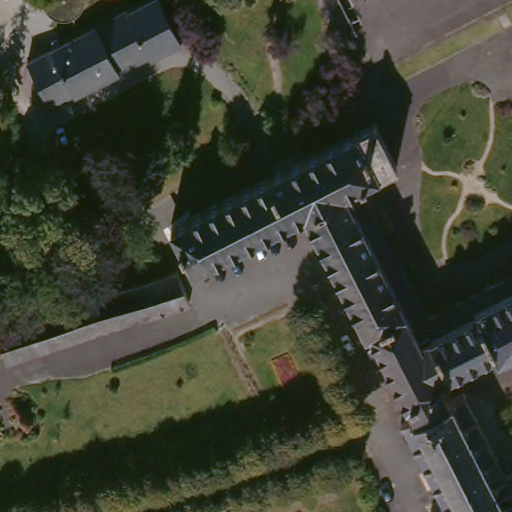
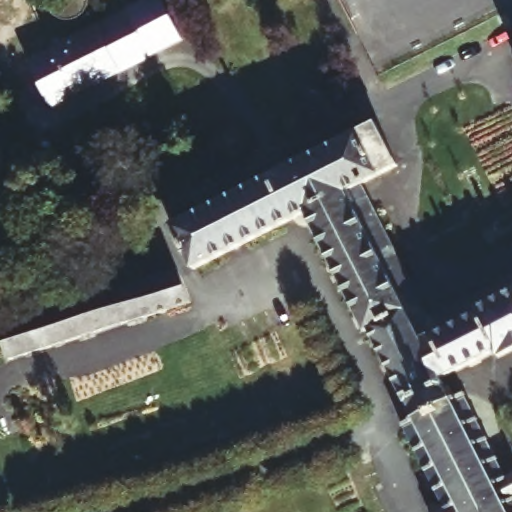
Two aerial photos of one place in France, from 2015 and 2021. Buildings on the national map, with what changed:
unchanged [(157,0),(162,0),(183,42),(136,65),(49,107),(27,62),(20,45),(49,31),(57,48),(64,45),(157,0)]
unchanged [(55,24),(47,20),(41,13),(39,5),(38,0),(90,0),(89,6),(87,11),(82,18),(76,22),(70,24),(64,25),(55,24)]
unchanged [(372,124),(395,168),(365,184),(385,223),(435,317),(510,279),(512,278),(512,346),(495,354),(491,350),(434,378),(439,388),(438,392),(445,404),(421,417),(415,405),(410,405),(386,358),(373,335),(370,334),(346,293),(305,216),(197,272),(175,228),(262,183),(372,124)]
unchanged [(2,359),(1,359),(0,356),(0,323),(37,310),(77,297),(74,283),(96,276),(101,290),(169,267),(179,303),(2,359)]
unchanged [(445,404),(462,396),(471,415),(476,415),(480,422),(478,424),(481,432),(484,431),(487,439),(488,444),(493,456),(498,457),(506,473),(512,472),(512,512),(441,512),(447,509),(445,500),(440,497),(437,495),(436,493),(436,490),(438,487),(434,478),(430,478),(427,477),(427,474),(427,470),(427,468),(422,457),(420,458),(417,458),(415,456),(413,452),(413,448),(414,446),(406,425),(421,417),(445,404)]

